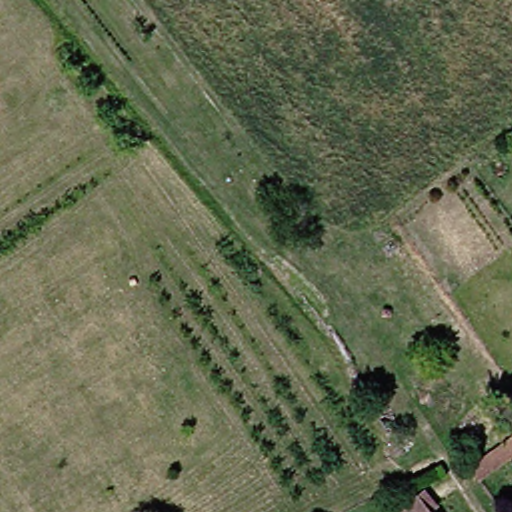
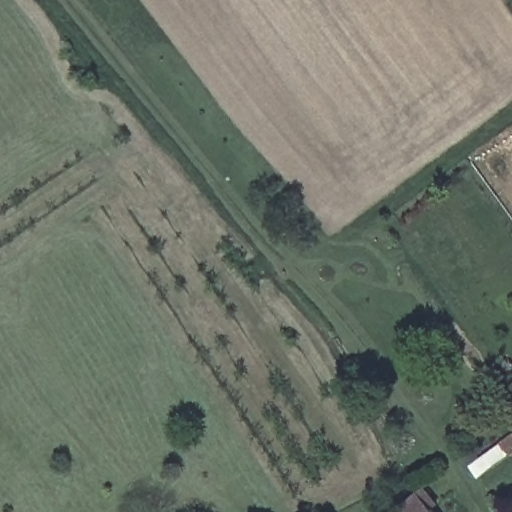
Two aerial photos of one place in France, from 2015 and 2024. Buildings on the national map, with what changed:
unchanged [(490,472),(480,459),(512,437),(512,456),(490,472)]
unchanged [(448,501),(442,507),(447,512),(405,512),(435,486),(448,501)]

